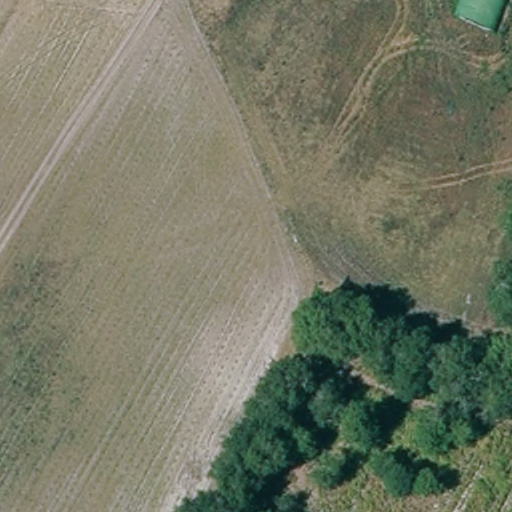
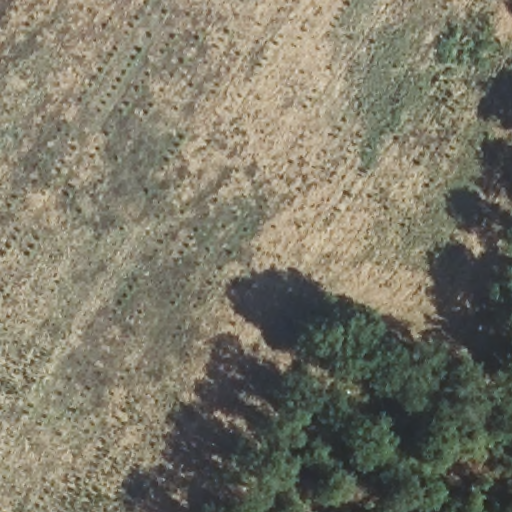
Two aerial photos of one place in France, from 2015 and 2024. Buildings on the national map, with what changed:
demolished [(488,34),(454,20),(461,0),(501,0),(488,34)]

